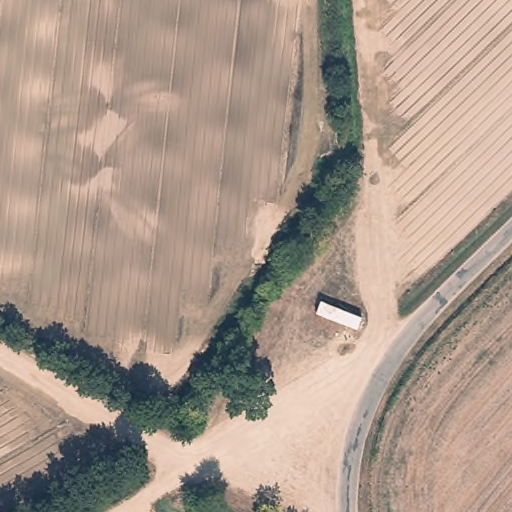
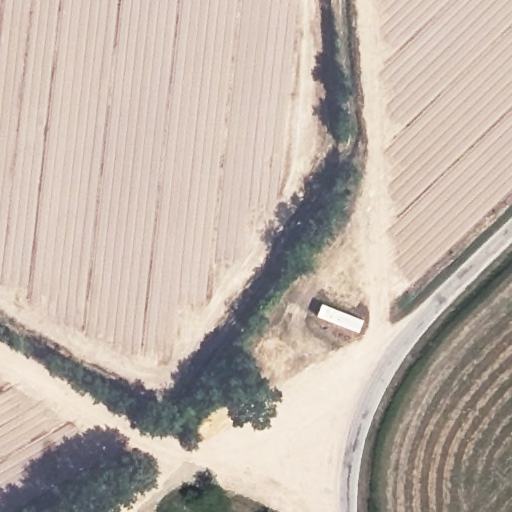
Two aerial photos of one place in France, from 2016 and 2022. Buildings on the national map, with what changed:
unchanged [(363,317),(358,331),(317,316),(322,303),(363,317)]

